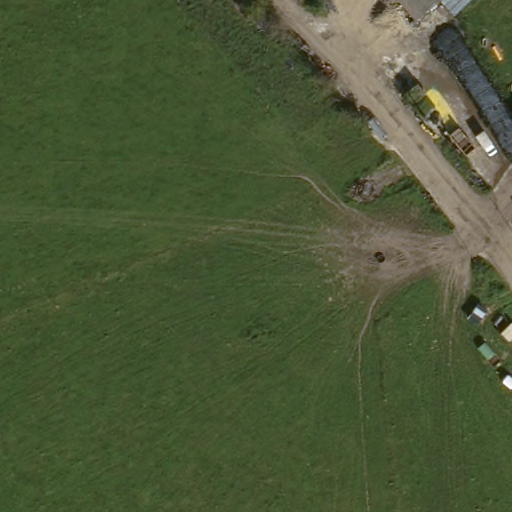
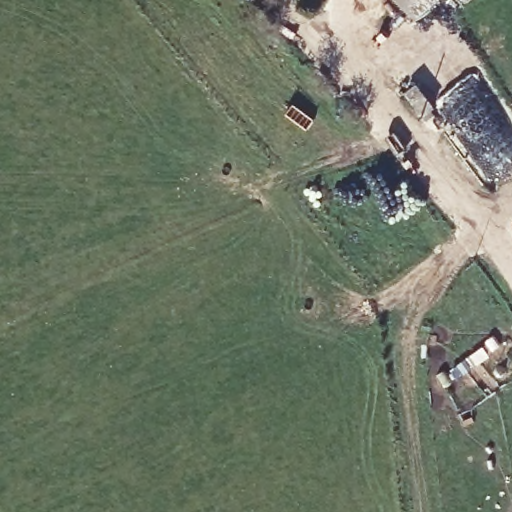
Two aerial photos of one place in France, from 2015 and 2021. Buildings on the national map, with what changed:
unchanged [(425,13),(413,1),(407,6),(402,0),(438,0),(425,13)]

